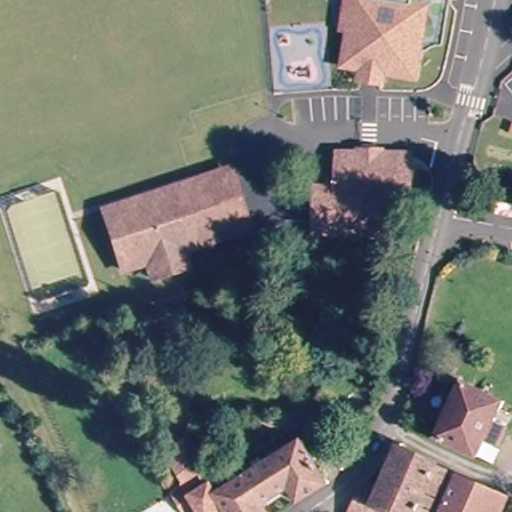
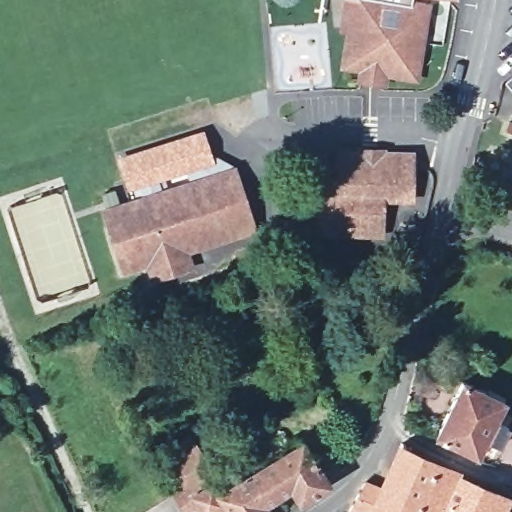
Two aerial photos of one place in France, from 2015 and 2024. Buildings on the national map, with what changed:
unchanged [(368,73),(351,72),(354,36),(346,35),(349,1),(342,1),(342,0),(410,0),(410,3),(427,5),(424,43),(421,79),(391,76),(390,87),(367,84),(368,73)]
new [(210,155),(230,164),(232,169),(188,182),(184,173),(159,182),(161,191),(142,197),(140,187),(127,192),(116,156),(202,130),(210,155)]
unchanged [(361,233),(317,233),(317,190),(327,190),(327,176),(338,176),(338,155),(407,156),(407,199),(382,199),(382,234),(361,233)]
unchanged [(152,284),(147,268),(131,273),(110,207),(232,169),(253,234),(182,256),(188,272),(152,284)]
unchanged [(503,402),(496,418),(505,422),(497,442),(487,438),(481,452),(439,437),(462,383),(503,402)]
unchanged [(188,437),(213,476),(208,479),(209,482),(212,486),(213,487),(216,492),(242,475),(299,440),(324,482),(295,501),(286,488),(266,502),(263,504),(268,512),(203,512),(191,493),(164,452),(188,437)]
unchanged [(368,490),(387,495),(405,452),(444,469),(427,512),(360,512),(368,490)]
unchanged [(512,497),(512,505),(509,512),(427,512),(444,469),(512,497)]

